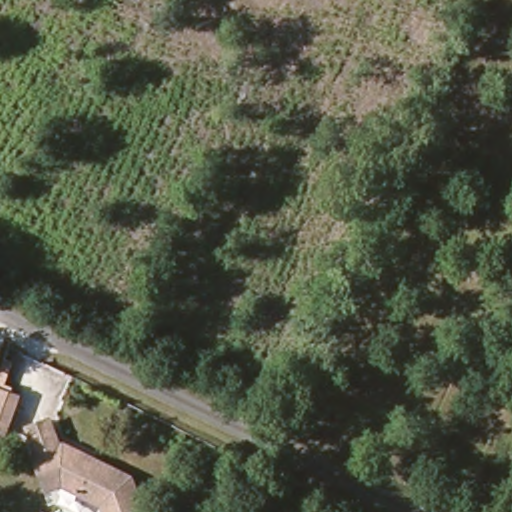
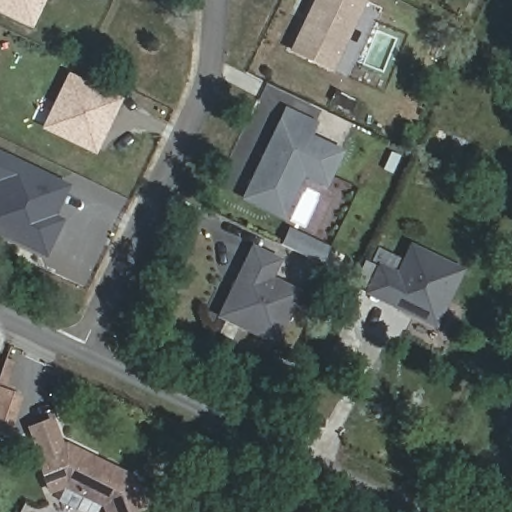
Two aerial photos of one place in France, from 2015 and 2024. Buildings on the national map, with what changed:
new [(0,10),(0,0),(37,0),(26,23),(0,10)]
new [(289,51),(313,0),(366,0),(332,71),(289,51)]
new [(84,146),(41,125),(65,75),(114,99),(96,136),(89,149),(84,146)]
new [(242,199),(279,119),(284,107),(318,123),(313,135),(345,150),(328,186),(304,176),(283,219),(242,199)]
new [(44,256),(0,234),(0,151),(70,185),(56,214),(65,218),(44,256)]
new [(322,264),(281,244),(288,228),(329,247),(322,264)]
new [(410,243),(465,267),(436,329),(366,294),(376,269),(394,277),(410,243)]
new [(300,289),(301,290),(276,345),(217,316),(251,246),(282,259),(274,277),(300,289)]
new [(16,397),(3,434),(0,433),(0,391),(16,397)]
unchanged [(149,512),(147,512),(110,512),(109,511),(69,491),(54,496),(41,462),(45,461),(35,435),(56,426),(66,453),(71,451),(138,483),(149,512)]

